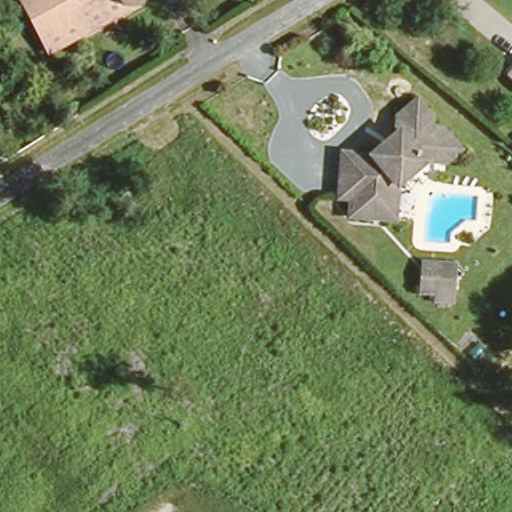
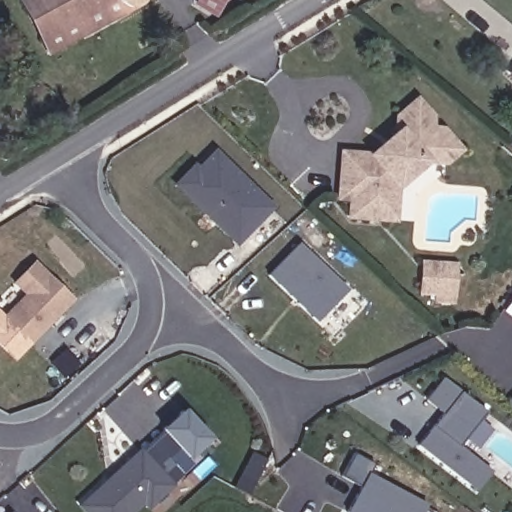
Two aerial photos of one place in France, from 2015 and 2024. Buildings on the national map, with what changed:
unchanged [(103,0),(44,29),(28,0),(103,0)]
unchanged [(44,29),(103,0),(130,0),(50,40),(44,29)]
unchanged [(506,67),(512,61),(512,72),(506,67)]
unchanged [(378,214),(351,212),(352,194),(340,193),(343,149),(371,152),(380,144),(385,145),(391,140),(391,134),(399,128),(396,125),(397,114),(417,97),(431,114),(430,126),(442,127),(460,147),(445,159),(426,158),(397,182),(397,195),(395,215),(378,214)]
new [(239,241),(177,184),(194,165),(198,169),(214,153),(271,206),(239,241)]
new [(316,322),(267,275),(298,242),(347,289),(316,322)]
unchanged [(456,281),(455,298),(437,297),(437,289),(422,288),(423,273),(425,258),(440,259),(438,274),(438,279),(456,281)]
new [(31,345),(0,317),(24,293),(12,282),(35,259),(75,299),(31,345)]
new [(475,490),(417,445),(432,426),(442,414),(425,400),(441,377),(458,392),(484,413),(457,447),(490,471),(475,490)]
new [(505,403),(512,396),(512,410),(505,403)]
new [(140,449),(161,431),(177,449),(167,457),(182,475),(173,483),(175,485),(147,509),(142,505),(135,512),(83,512),(78,506),(140,449)]
new [(256,452),(270,459),(251,494),(237,487),(256,452)]
new [(422,512),(346,512),(367,472),(427,503),(422,512)]
new [(12,511),(13,512),(11,512),(12,511)]

